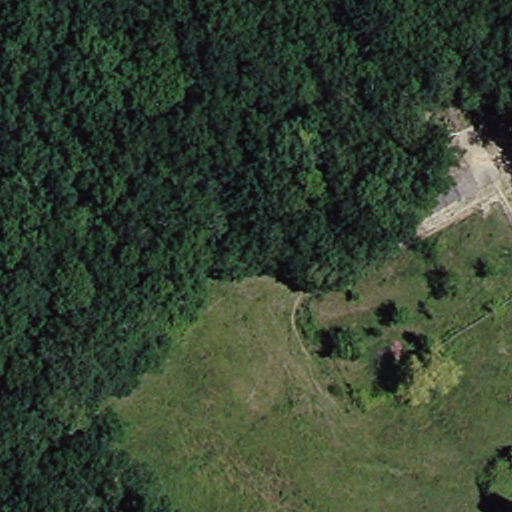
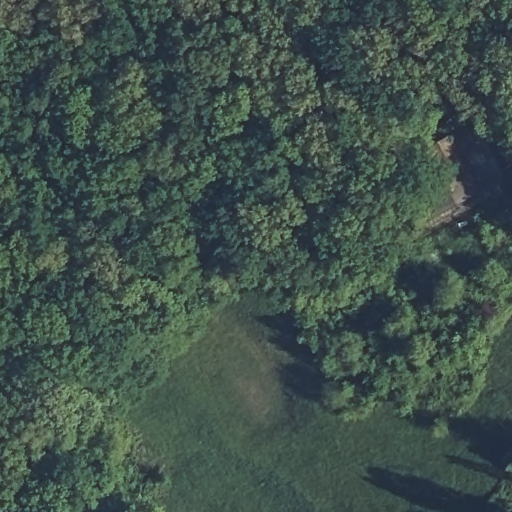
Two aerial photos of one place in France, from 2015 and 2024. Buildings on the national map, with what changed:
unchanged [(428,177),(454,165),(465,192),(439,205),(428,177)]

